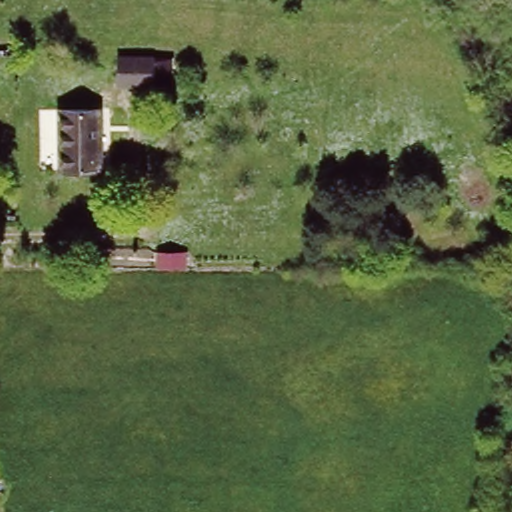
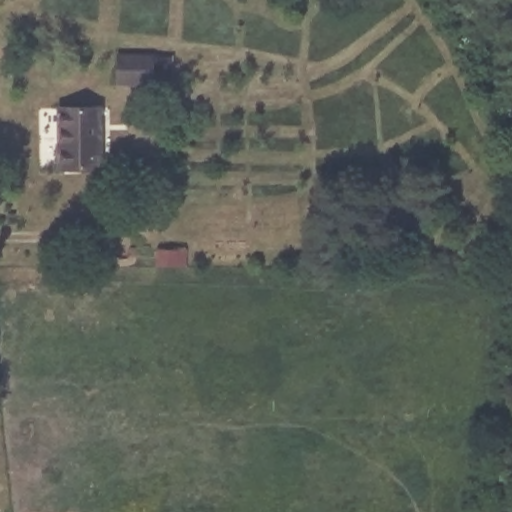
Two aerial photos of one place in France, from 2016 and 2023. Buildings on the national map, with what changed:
unchanged [(126,85),(127,55),(161,55),(161,85),(126,85)]
unchanged [(60,169),(60,105),(98,105),(98,169),(60,169)]

